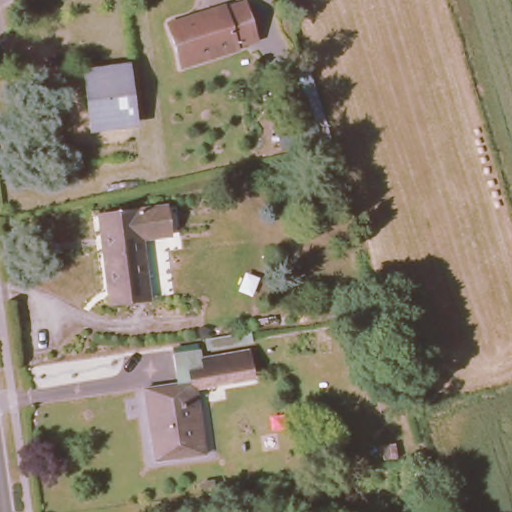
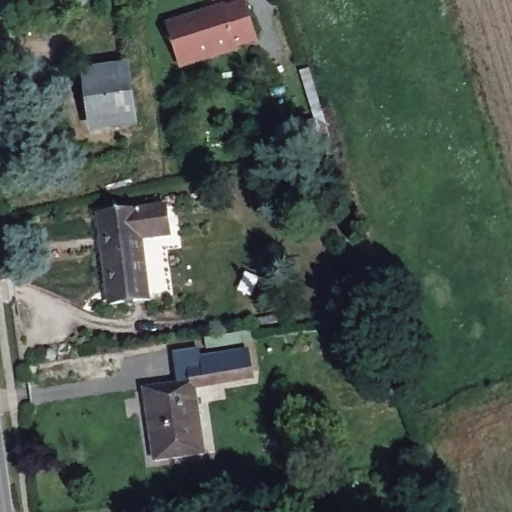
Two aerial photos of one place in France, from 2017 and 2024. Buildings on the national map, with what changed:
unchanged [(204,16),(224,10),(225,12),(245,6),(257,44),(237,50),(237,52),(180,71),(167,27),(184,22),(204,16)]
unchanged [(87,122),(80,73),(121,68),(128,122),(112,125),(89,129),(87,122)]
unchanged [(149,300),(110,303),(102,246),(102,235),(99,214),(167,205),(171,234),(142,237),(149,300)]
unchanged [(154,460),(144,387),(177,382),(173,352),(198,348),(200,356),(249,351),(252,372),(254,381),(195,390),(204,453),(154,460)]
unchanged [(387,443),(392,457),(379,462),(375,448),(387,443)]

